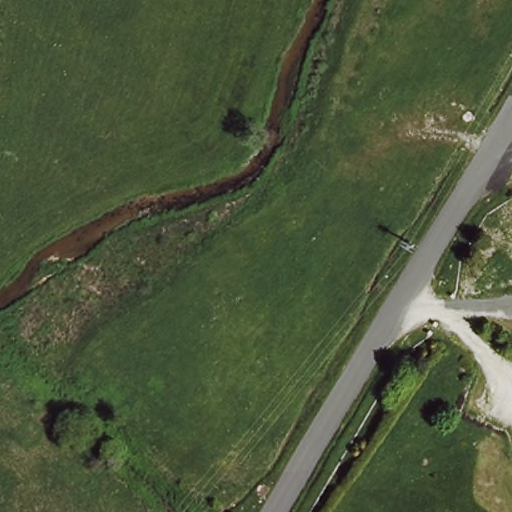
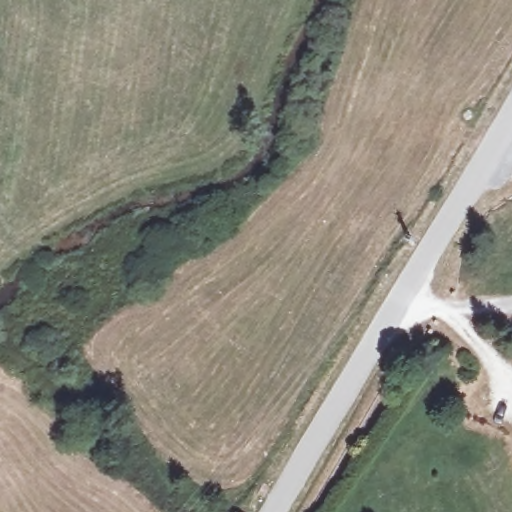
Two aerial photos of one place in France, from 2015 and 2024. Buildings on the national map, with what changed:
[]

